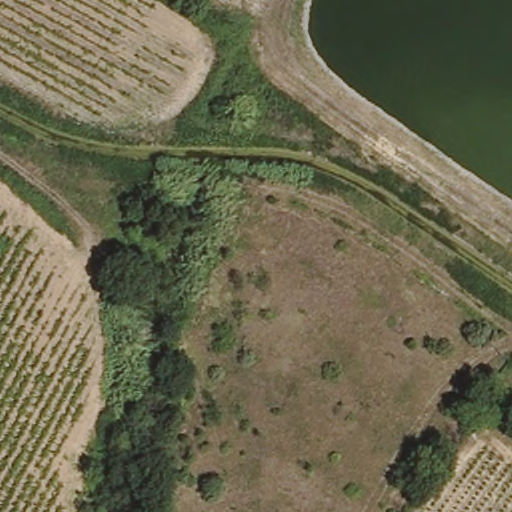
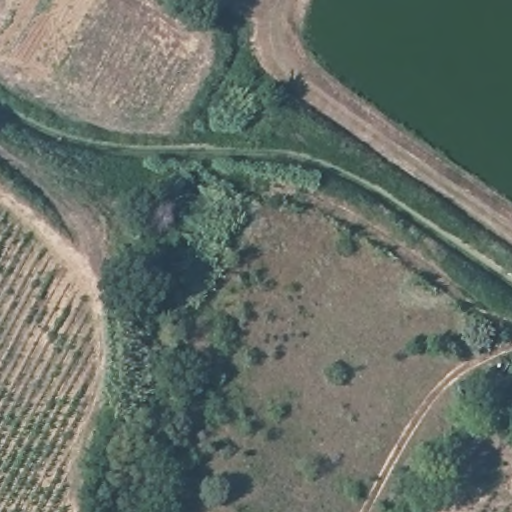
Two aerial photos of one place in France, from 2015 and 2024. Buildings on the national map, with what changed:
[]

